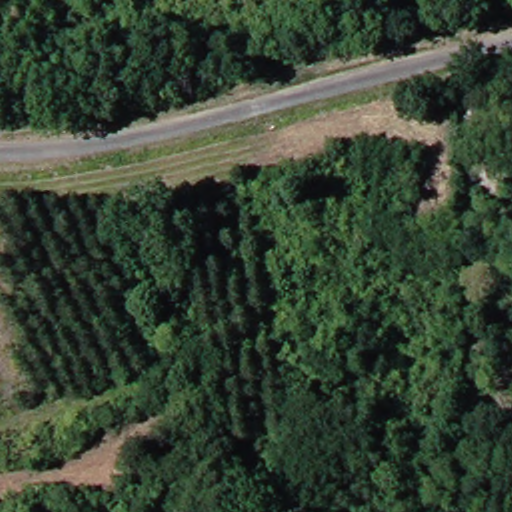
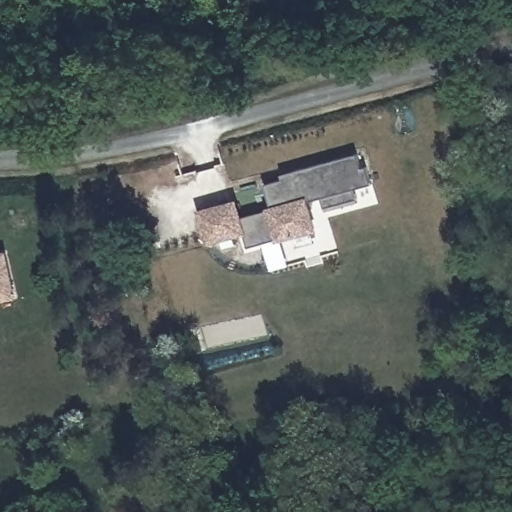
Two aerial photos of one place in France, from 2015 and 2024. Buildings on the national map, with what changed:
new [(229,202),(234,218),(265,209),(259,185),(278,179),(276,174),(353,153),(357,168),(362,166),(367,184),(349,189),(352,199),(319,208),(315,198),(300,202),(308,230),(241,248),(237,233),(221,237),(203,242),(194,211),(213,207),(229,202)]
new [(18,297),(0,300),(0,248),(9,246),(18,297)]

